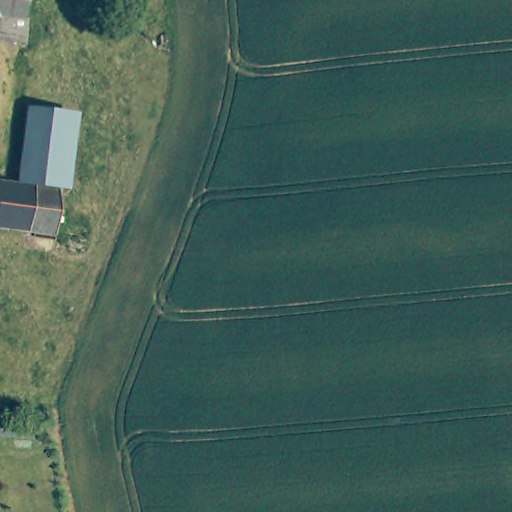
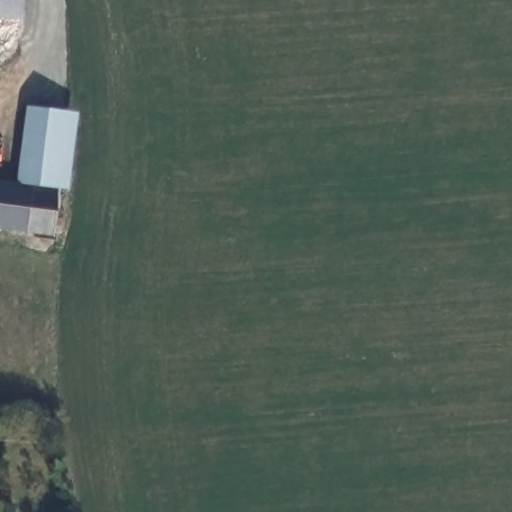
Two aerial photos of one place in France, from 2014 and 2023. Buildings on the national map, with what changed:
unchanged [(31,13),(18,12),(17,37),(5,37),(4,29),(0,29),(0,0),(31,0),(31,13)]
unchanged [(72,187),(58,185),(52,233),(0,227),(0,178),(19,179),(27,108),(79,111),(72,187)]

